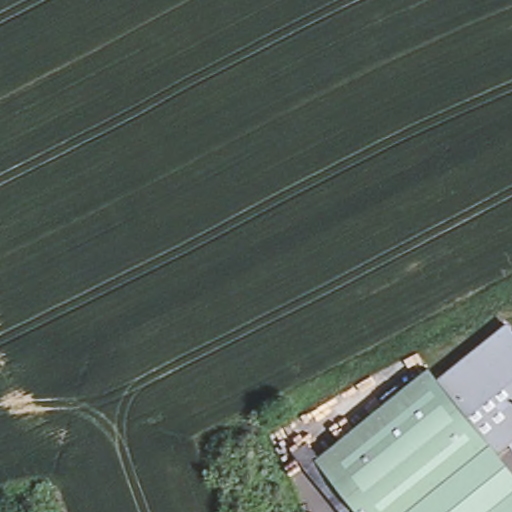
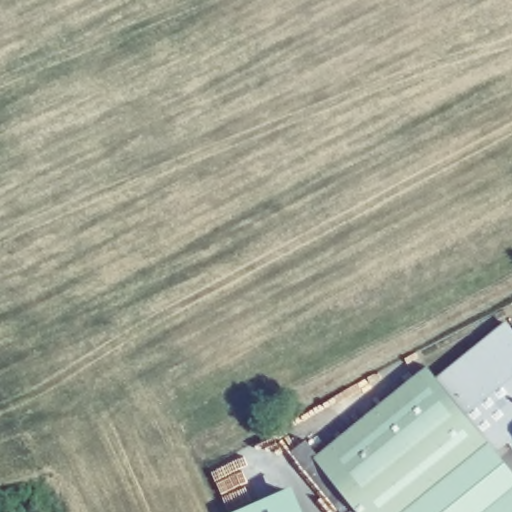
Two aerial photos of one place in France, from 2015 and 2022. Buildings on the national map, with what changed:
unchanged [(484,436),(486,434),(436,372),(505,318),(512,327),(512,432),(507,436),(493,447),(484,436)]
unchanged [(427,361),(436,372),(486,434),(484,436),(390,512),(377,512),(340,431),(427,361)]
unchanged [(303,461),(290,446),(305,434),(318,449),(340,431),(377,512),(344,512),(332,497),(303,461)]
unchanged [(484,436),(493,447),(512,471),(512,501),(494,512),(390,512),(484,436)]
new [(303,512),(236,512),(291,486),(303,512)]
unchanged [(512,501),(512,512),(494,512),(512,501)]

